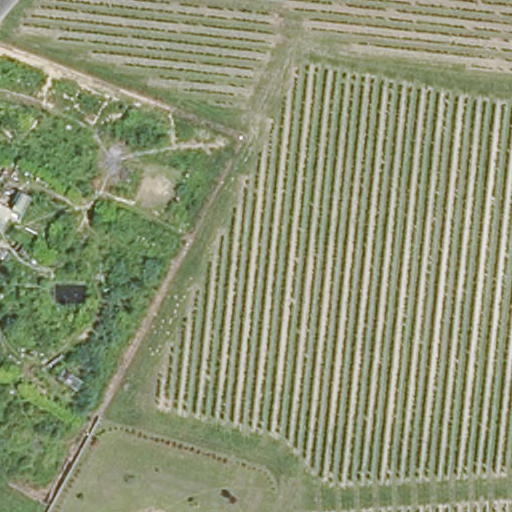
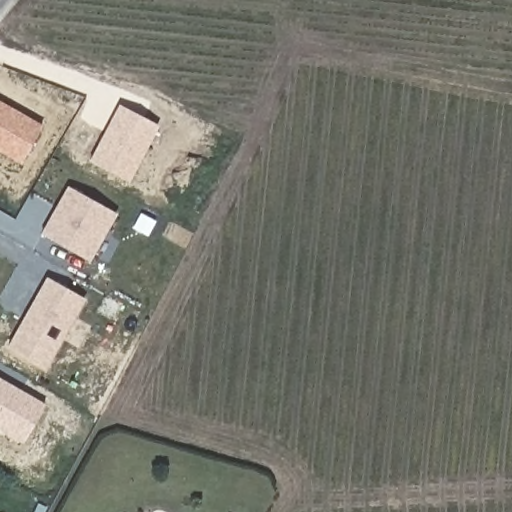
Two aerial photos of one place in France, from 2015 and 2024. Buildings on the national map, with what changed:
new [(42,126),(21,163),(0,151),(0,102),(42,126)]
new [(129,183),(90,162),(121,104),(159,124),(129,183)]
new [(91,261),(41,233),(67,185),(117,214),(91,261)]
new [(21,354),(7,346),(46,276),(86,299),(50,362),(25,348),(21,354)]
new [(45,404),(22,443),(0,430),(0,378),(45,404)]

